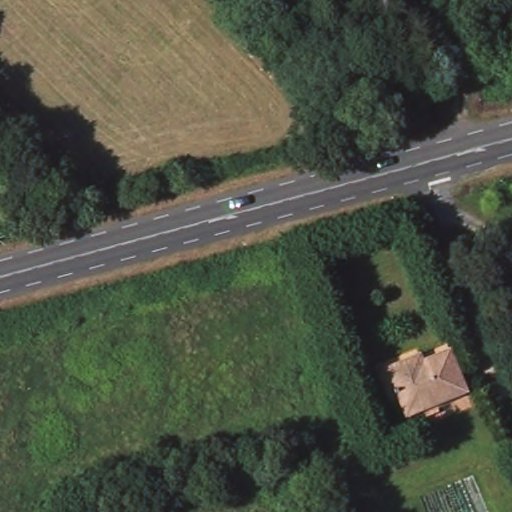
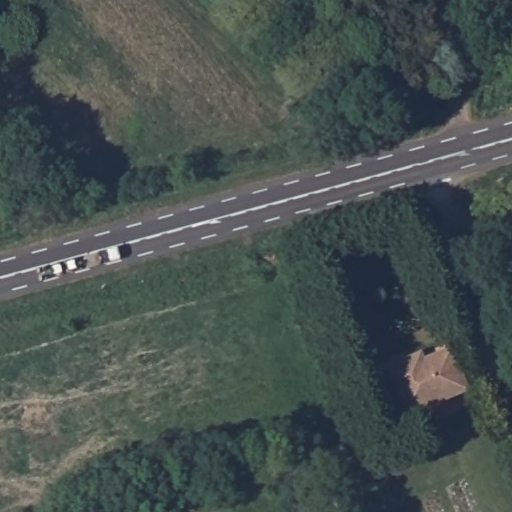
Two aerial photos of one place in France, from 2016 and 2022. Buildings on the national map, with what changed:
unchanged [(469,390),(441,402),(443,408),(428,415),(425,409),(411,416),(390,370),(410,361),(422,355),(425,363),(451,351),(469,390)]

